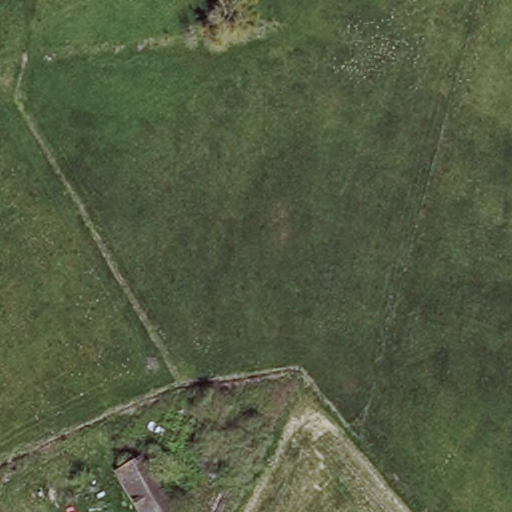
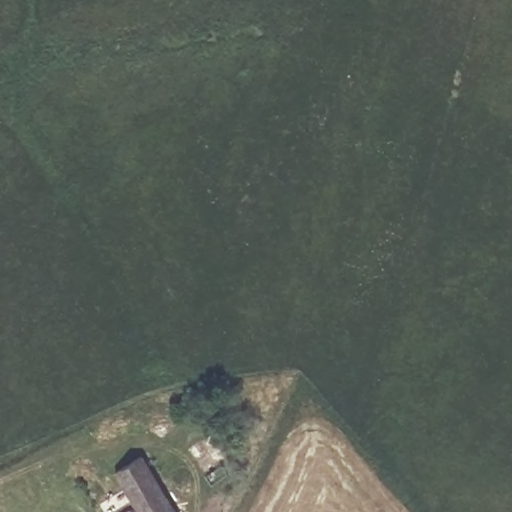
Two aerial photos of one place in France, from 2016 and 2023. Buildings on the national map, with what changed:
unchanged [(180,512),(140,512),(112,466),(142,450),(180,512)]

